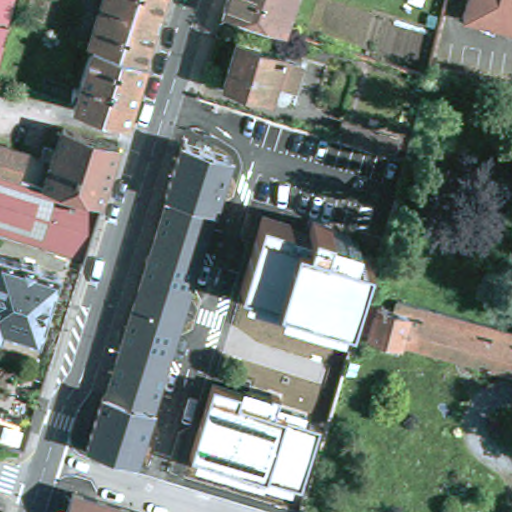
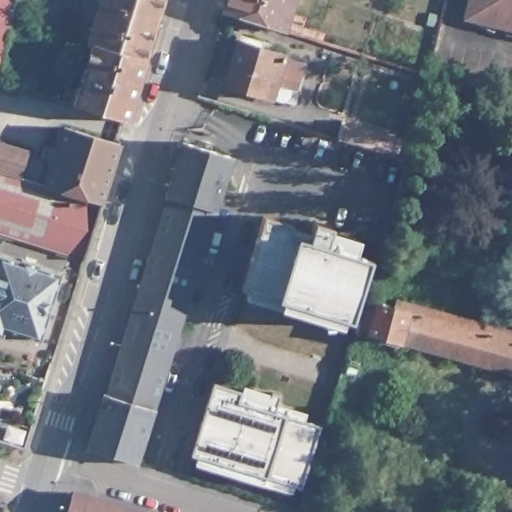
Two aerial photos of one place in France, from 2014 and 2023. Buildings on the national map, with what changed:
unchanged [(9,18),(9,20),(0,53),(0,0),(15,0),(9,18)]
unchanged [(93,45),(89,45),(104,0),(164,0),(145,61),(93,45)]
unchanged [(281,30),(225,12),(229,0),(291,0),(281,30)]
unchanged [(462,20),(467,0),(512,0),(512,32),(462,20)]
unchanged [(259,47),(261,41),(272,45),(269,52),(277,55),(278,51),(287,55),(286,59),(302,64),(289,106),(224,85),(238,41),(259,47)]
unchanged [(145,61),(126,122),(83,108),(73,105),(76,96),(78,88),(79,86),(82,79),(93,45),(145,61)]
unchanged [(0,82),(0,69),(10,73),(8,84),(0,82)]
unchanged [(348,119),(404,136),(399,154),(346,137),(342,136),(348,119)]
unchanged [(51,141),(62,145),(68,124),(124,140),(105,199),(0,168),(0,140),(46,153),(51,141)]
unchanged [(234,161),(221,214),(159,410),(146,455),(141,471),(88,452),(185,147),(234,161)]
unchanged [(88,256),(58,247),(0,231),(0,168),(105,199),(88,256)]
unchanged [(309,225),(312,218),(361,239),(356,255),(370,261),(351,320),(345,320),(341,328),(276,308),(237,293),(261,216),(309,225)]
unchanged [(26,260),(43,265),(43,268),(65,275),(45,339),(9,328),(8,336),(0,334),(0,260),(1,255),(24,262),(26,260)]
unchanged [(412,305),(512,334),(512,380),(441,360),(381,343),(381,340),(367,336),(377,305),(391,308),(409,313),(412,305)]
unchanged [(241,390),(243,386),(278,398),(277,402),(307,412),(305,420),(321,425),(301,488),(292,485),(288,494),(194,463),(195,455),(191,453),(213,382),(241,390)]
unchanged [(31,448),(0,438),(6,420),(37,428),(31,448)]
unchanged [(104,505),(128,512),(73,512),(78,496),(104,505)]

